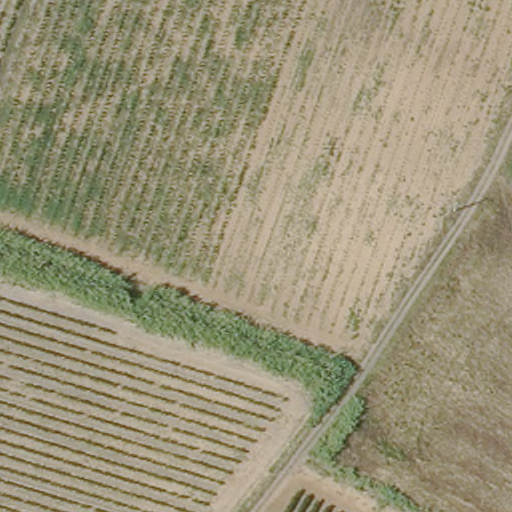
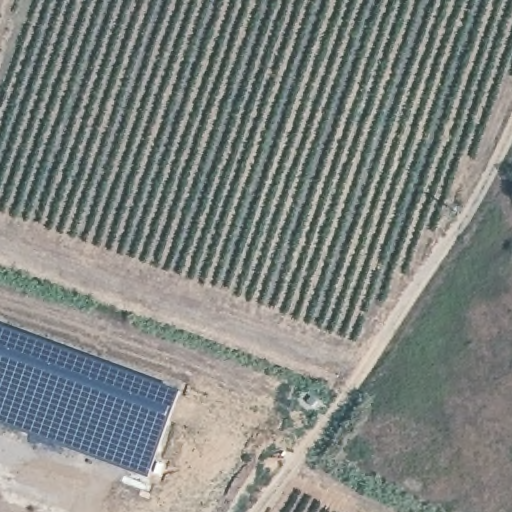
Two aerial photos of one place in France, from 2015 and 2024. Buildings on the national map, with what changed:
new [(181,391),(148,479),(37,440),(0,426),(0,322),(112,363),(181,391)]

